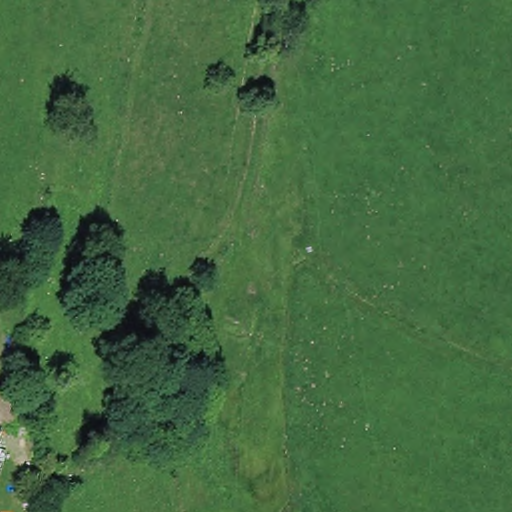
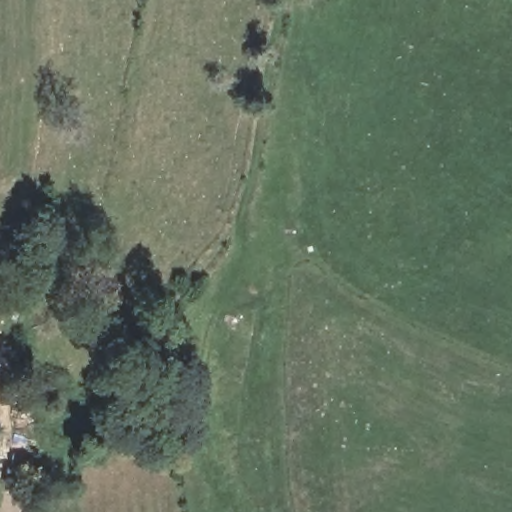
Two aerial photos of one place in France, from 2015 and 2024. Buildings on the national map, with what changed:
unchanged [(20,397),(2,458),(0,457),(0,391),(20,397)]

